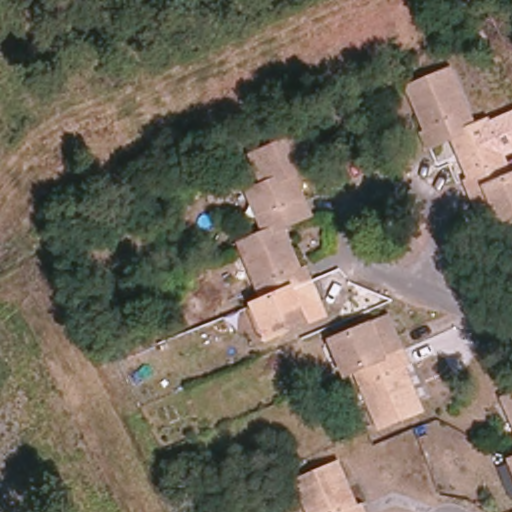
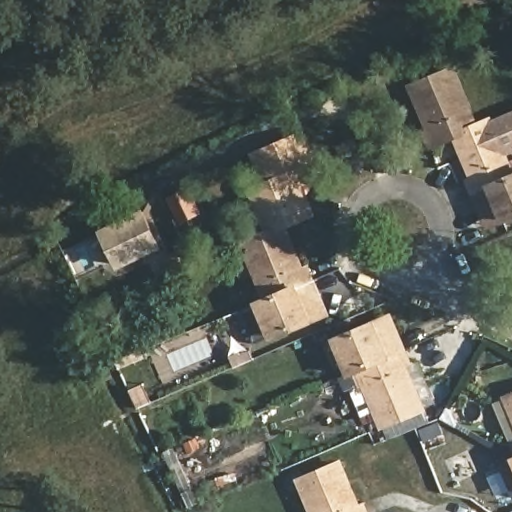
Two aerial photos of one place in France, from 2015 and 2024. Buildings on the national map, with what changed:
unchanged [(476,176),(482,173),(465,134),(442,143),(435,125),(441,122),(422,78),(465,59),(486,105),(492,121),(505,115),(512,132),(512,210),(493,218),(476,176)]
unchanged [(270,341),(253,303),(260,298),(239,241),(262,229),(246,188),(260,181),(249,154),(300,132),(316,167),(297,174),(316,216),(285,228),(303,269),(310,267),(330,314),(270,341)]
new [(116,269),(98,229),(145,208),(164,247),(116,269)]
unchanged [(347,377),(331,340),(371,322),(386,316),(391,327),(407,364),(400,368),(420,410),(382,429),(362,385),(357,372),(347,377)]
unchanged [(512,394),(512,429),(500,400),(512,394)]
unchanged [(333,465),(350,506),(362,501),(367,512),(305,512),(292,482),(333,465)]

